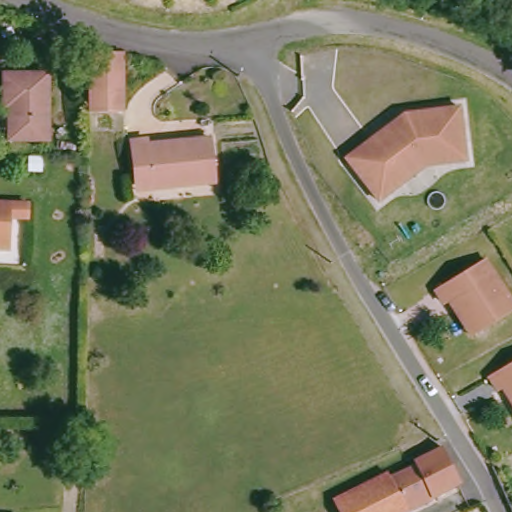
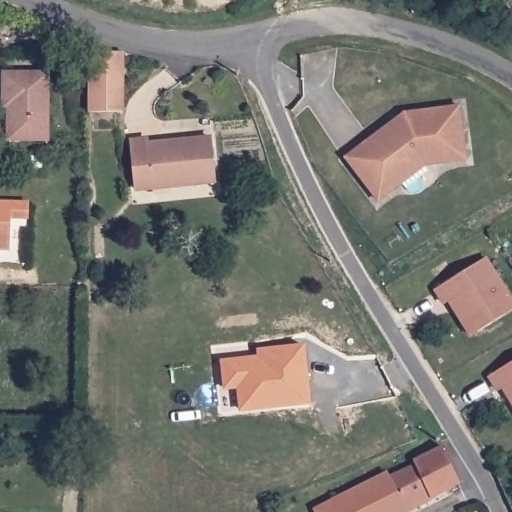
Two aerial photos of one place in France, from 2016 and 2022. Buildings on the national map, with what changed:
unchanged [(88,112),(89,71),(89,53),(120,54),(120,72),(120,112),(88,112)]
unchanged [(48,64),(48,131),(7,131),(7,99),(2,99),(2,64),(48,64)]
unchanged [(405,181),(379,199),(350,160),(375,142),(372,137),(389,125),(392,129),(402,123),(402,116),(407,112),(462,108),(467,162),(433,164),(427,165),(405,181)]
unchanged [(130,185),(125,142),(142,140),(143,145),(206,138),(210,183),(166,187),(131,190),(130,185)]
unchanged [(8,199),(25,199),(25,213),(8,213),(7,245),(0,245),(0,199),(8,199)]
unchanged [(445,303),(435,289),(485,258),(512,301),(512,310),(478,331),(472,335),(450,300),(445,303)]
new [(241,411),(238,388),(224,389),(221,360),(257,356),(257,349),(305,344),(311,404),(241,411)]
unchanged [(500,390),(490,375),(512,361),(512,398),(505,386),(500,390)]
unchanged [(329,496),(384,469),(386,473),(412,461),(409,456),(437,442),(455,479),(390,512),(318,512),(314,503),(329,496)]

